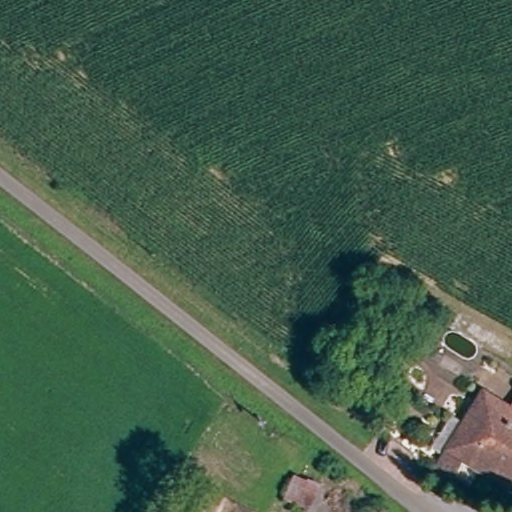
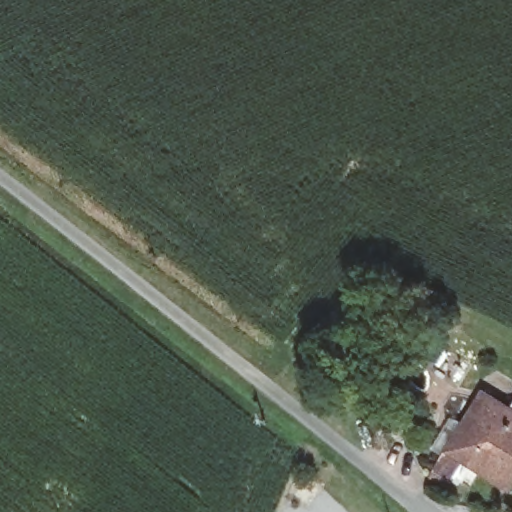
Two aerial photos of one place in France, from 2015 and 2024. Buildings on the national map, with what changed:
unchanged [(509,493),(462,465),(449,484),(429,473),(437,459),(427,450),(449,417),(459,423),(481,392),(510,403),(512,400),(512,487),(509,493)]
unchanged [(295,512),(280,506),(294,476),(324,484),(313,512),(295,512)]

